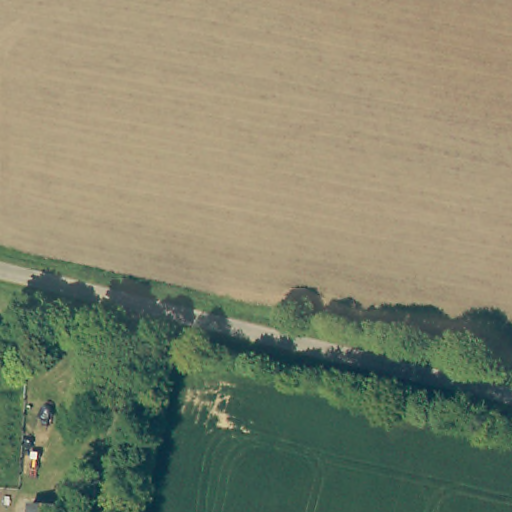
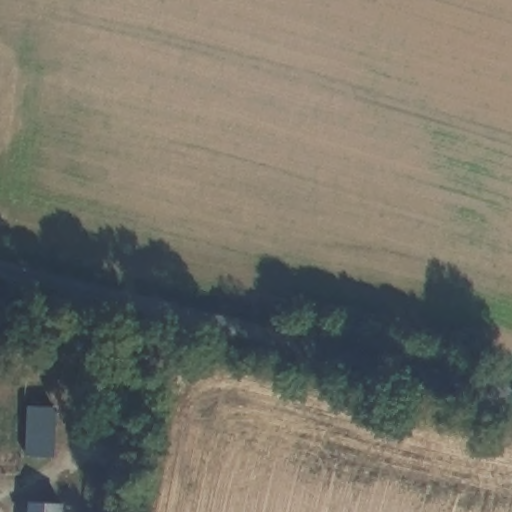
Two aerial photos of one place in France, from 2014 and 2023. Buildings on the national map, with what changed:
new [(59,409),(56,458),(26,456),(27,406),(59,409)]
unchanged [(66,505),(65,512),(37,512),(37,504),(66,505)]

